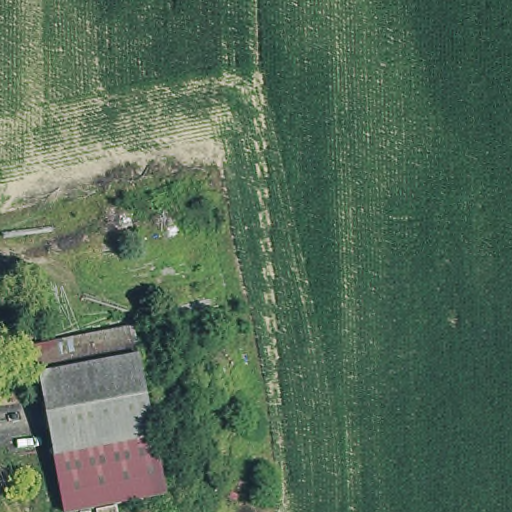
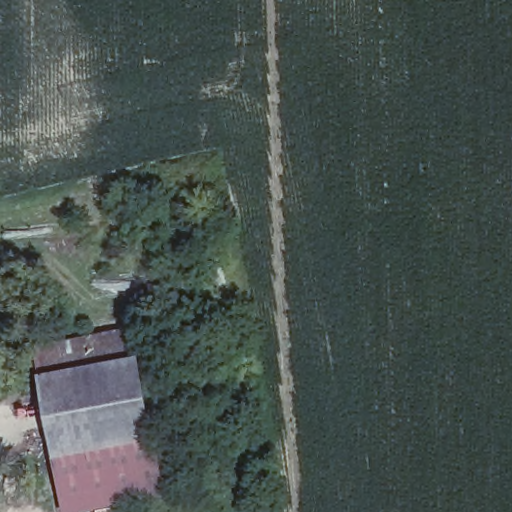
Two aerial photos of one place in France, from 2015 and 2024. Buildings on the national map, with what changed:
unchanged [(33,345),(131,323),(157,445),(59,466),(33,345)]
unchanged [(157,445),(167,486),(68,507),(59,466),(157,445)]

